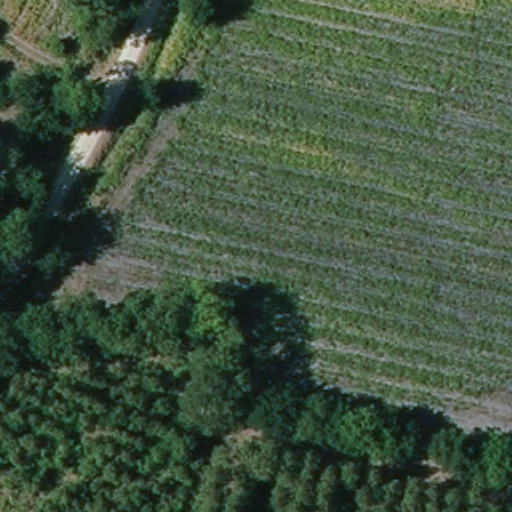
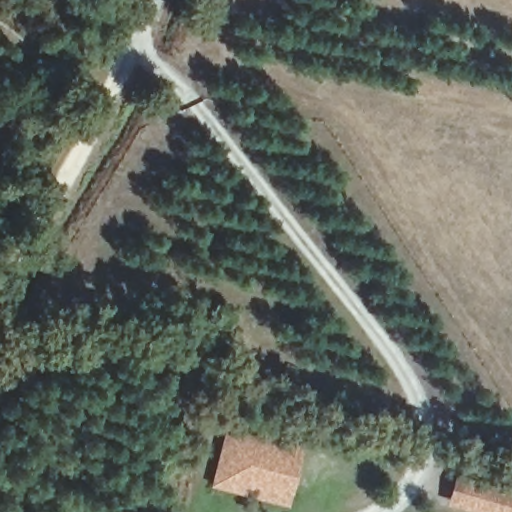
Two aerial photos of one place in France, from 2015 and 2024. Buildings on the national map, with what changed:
new [(210,487),(225,429),(302,450),(288,508),(210,487)]
new [(512,491),(512,512),(472,512),(446,505),(455,474),(512,491)]

